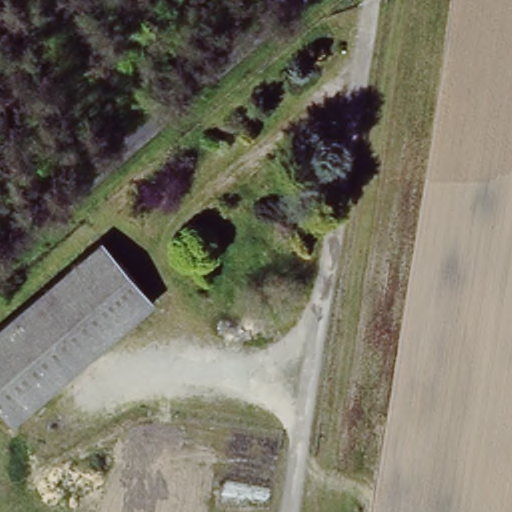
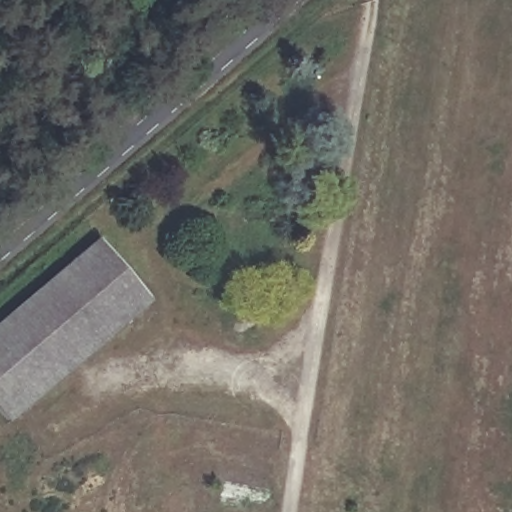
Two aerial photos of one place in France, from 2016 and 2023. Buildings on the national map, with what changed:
unchanged [(0,415),(0,326),(98,240),(150,302),(8,425),(0,415)]

